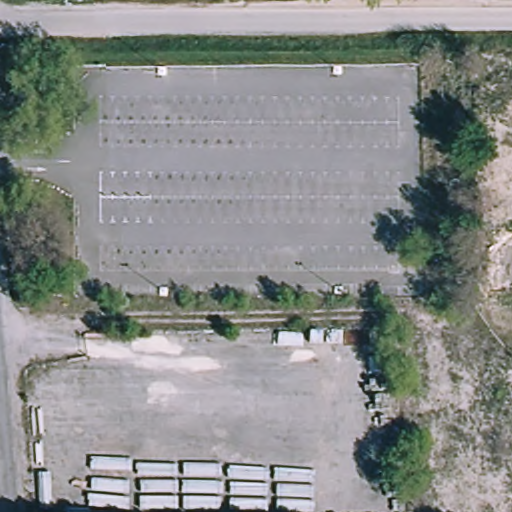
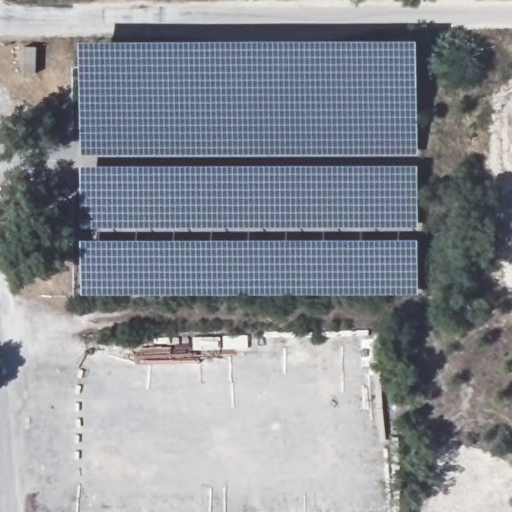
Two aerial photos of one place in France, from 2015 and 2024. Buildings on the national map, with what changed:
new [(419,293),(82,295),(82,40),(419,40),(419,293)]

